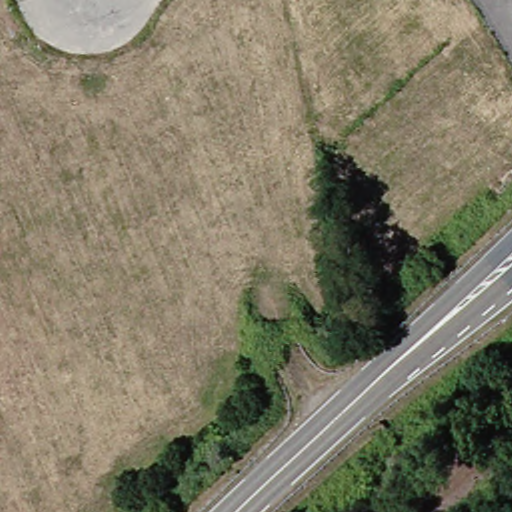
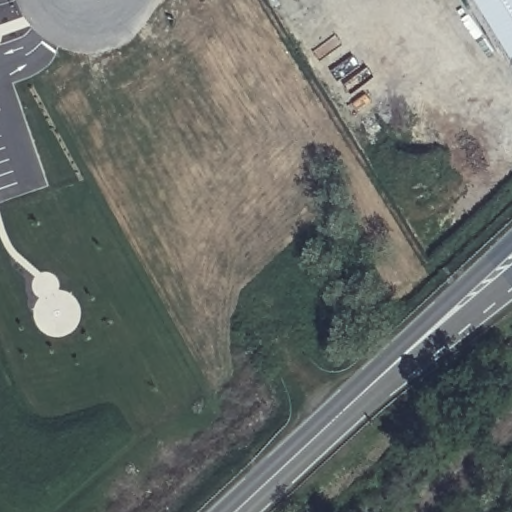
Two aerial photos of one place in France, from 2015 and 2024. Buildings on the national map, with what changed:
new [(474,0),(512,0),(512,59),(474,0)]

